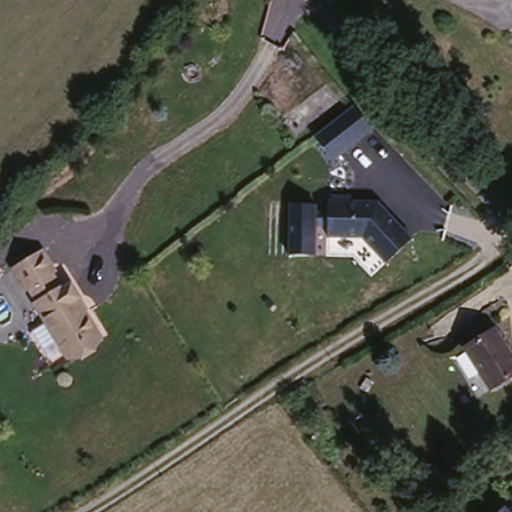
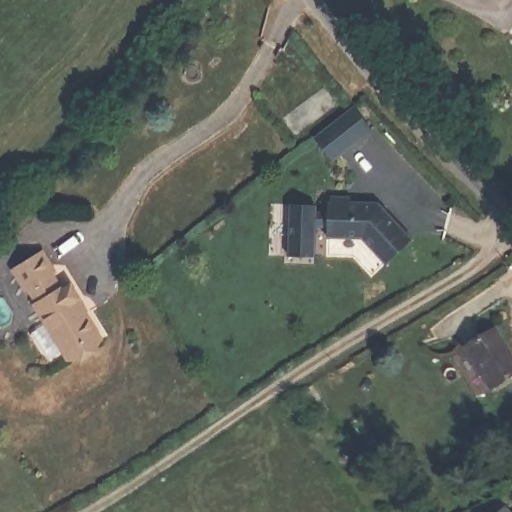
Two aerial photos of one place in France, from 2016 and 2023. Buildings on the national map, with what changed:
unchanged [(315,138),(356,107),(373,130),(332,161),(315,138)]
unchanged [(362,239),(325,235),(328,200),(330,200),(330,197),(350,198),(350,201),(378,204),(412,241),(386,265),(362,239)]
unchanged [(288,255),(289,203),(316,204),(316,211),(327,210),(325,227),(316,226),(317,256),(288,255)]
unchanged [(44,249),(110,339),(77,361),(11,266),(44,249)]
unchanged [(512,363),(512,378),(485,391),(462,349),(496,331),(512,363)]
unchanged [(512,512),(507,512),(512,507),(512,512)]

